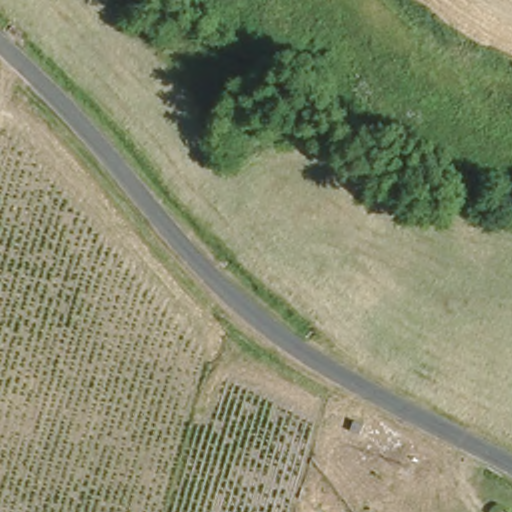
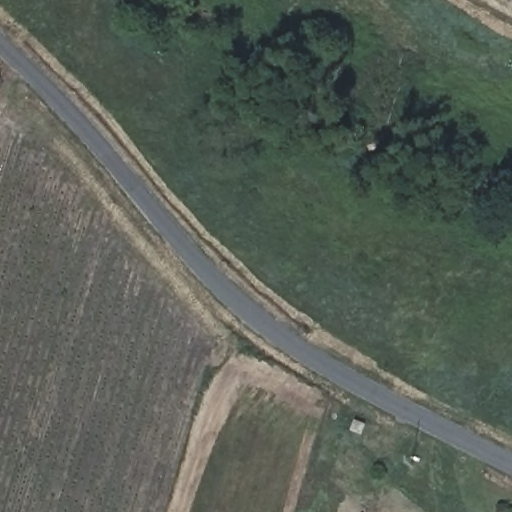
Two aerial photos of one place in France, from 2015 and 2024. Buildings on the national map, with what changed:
unchanged [(364,432),(351,429),(354,417),(367,422),(364,432)]

